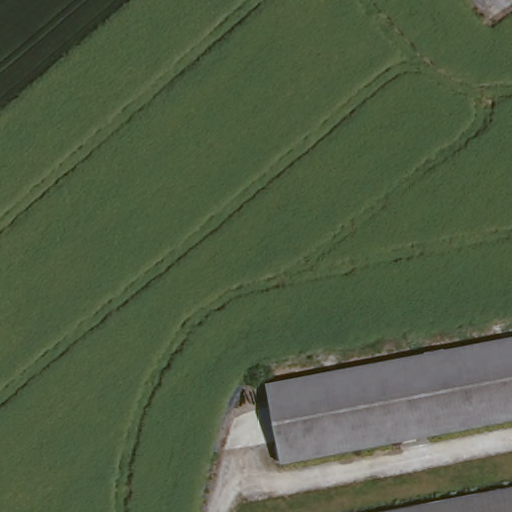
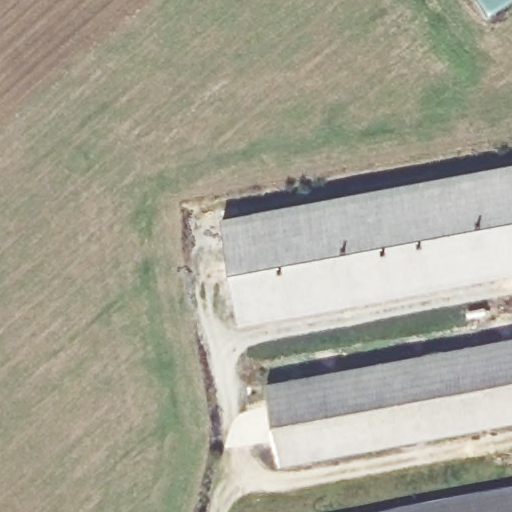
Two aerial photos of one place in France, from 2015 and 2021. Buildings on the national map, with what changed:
new [(222,219),(512,163),(512,274),(241,325),(222,219)]
unchanged [(270,382),(512,339),(512,417),(284,459),(270,382)]
unchanged [(368,512),(512,486),(512,512),(368,512)]

